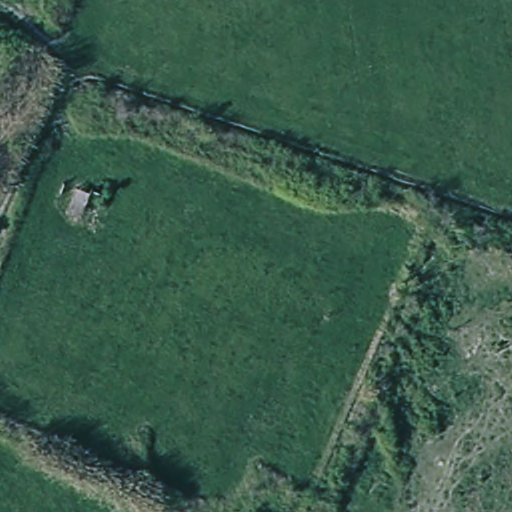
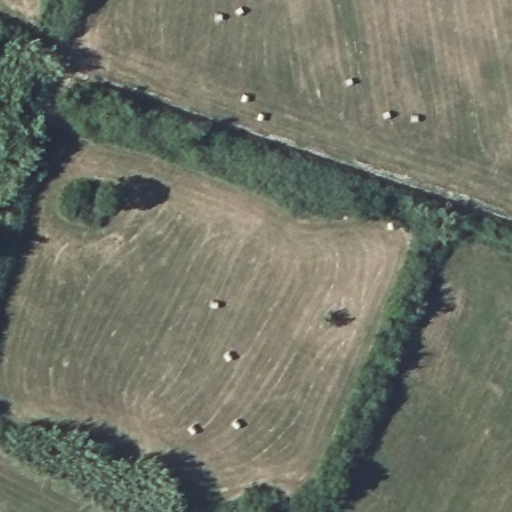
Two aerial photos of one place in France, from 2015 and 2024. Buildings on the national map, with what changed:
unchanged [(81,192),(97,198),(93,207),(108,214),(102,232),(72,220),(81,192)]

